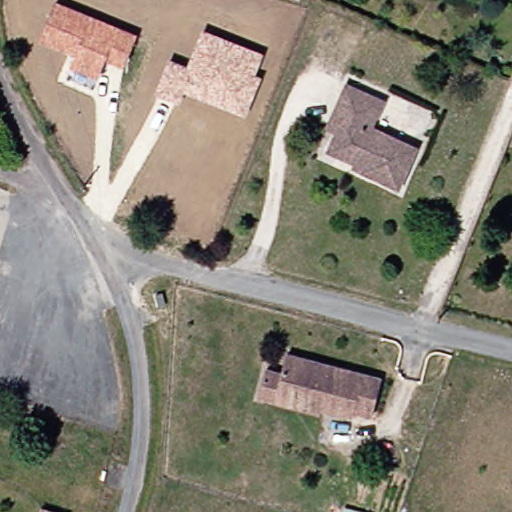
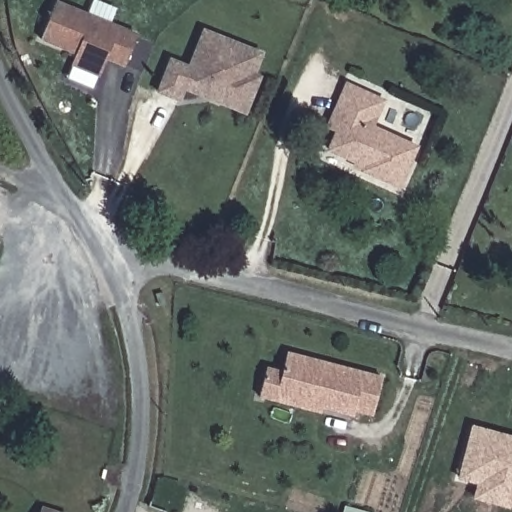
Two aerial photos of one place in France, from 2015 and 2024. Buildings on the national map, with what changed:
unchanged [(76,55),(41,41),(57,1),(137,34),(123,68),(106,60),(99,77),(72,66),(76,55)]
unchanged [(203,29),(265,52),(257,74),(263,76),(246,117),(185,91),(180,104),(155,93),(170,58),(189,65),(203,29)]
unchanged [(372,100),(360,127),(405,146),(388,187),(353,170),(355,165),(318,149),(332,113),(324,110),(335,84),(372,100)]
unchanged [(367,420),(349,415),(347,420),(315,412),(316,407),(272,396),(282,357),(377,382),(367,420)]
new [(461,478),(475,427),(495,432),(512,437),(512,507),(477,497),(481,483),(461,478)]
unchanged [(80,512),(36,512),(41,498),(80,512)]

